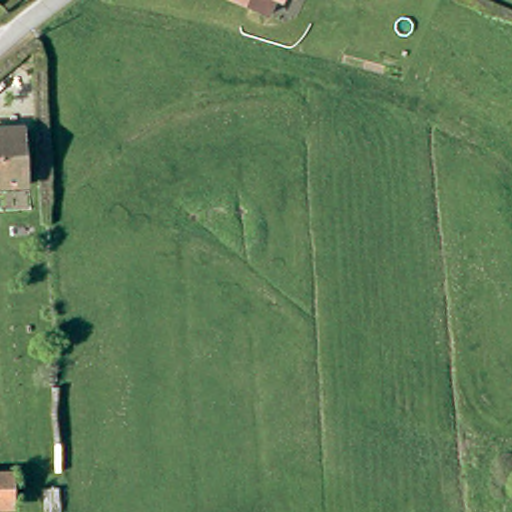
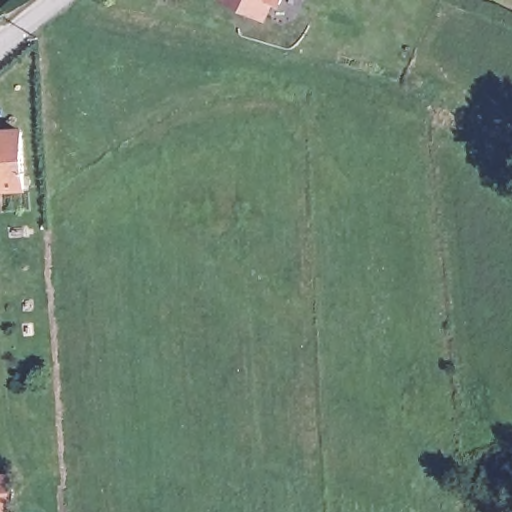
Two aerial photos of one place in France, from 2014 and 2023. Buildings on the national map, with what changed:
unchanged [(0,132),(24,130),(27,187),(0,190),(0,132)]
unchanged [(14,507),(0,507),(0,476),(13,475),(14,507)]

